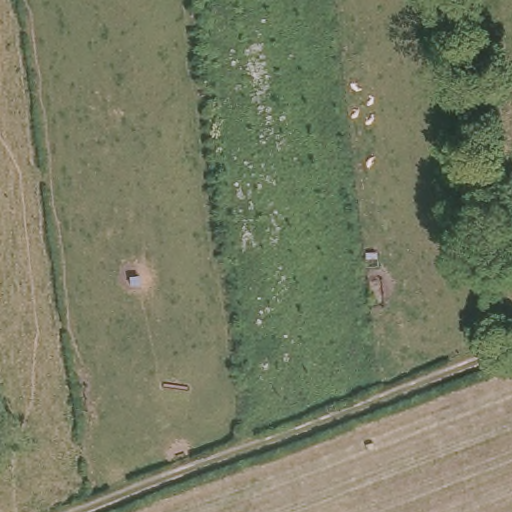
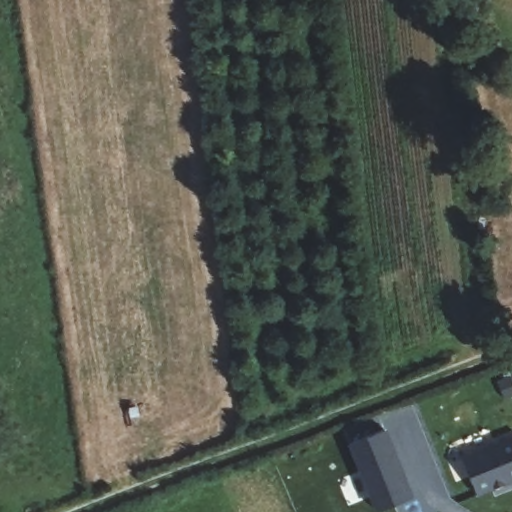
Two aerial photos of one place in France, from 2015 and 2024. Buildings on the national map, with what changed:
new [(413,506),(396,512),(376,512),(351,452),(385,438),(413,506)]
new [(512,445),(512,489),(478,503),(463,466),(512,445)]

